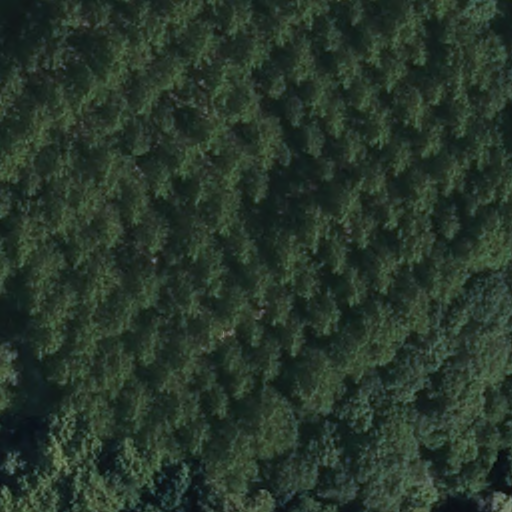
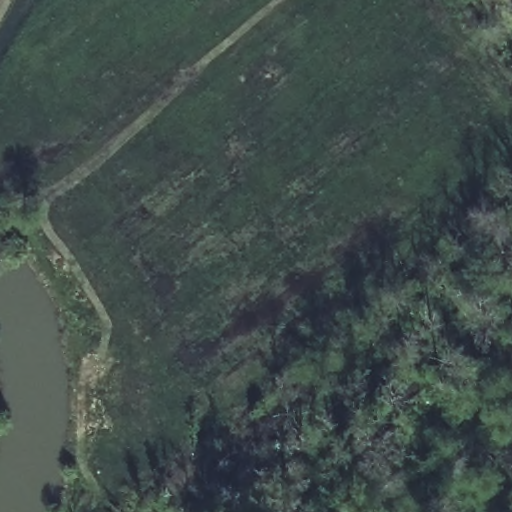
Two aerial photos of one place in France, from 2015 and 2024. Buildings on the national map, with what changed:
[]

